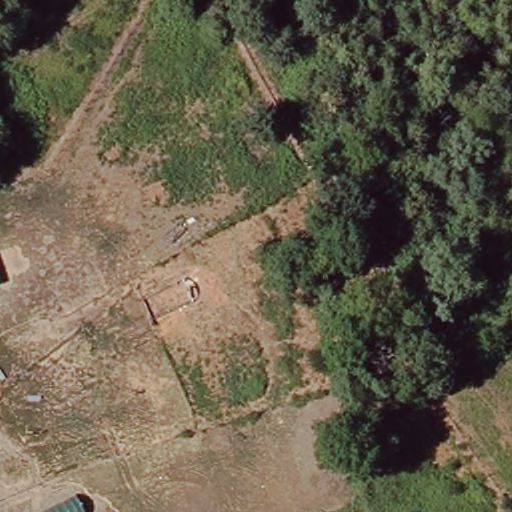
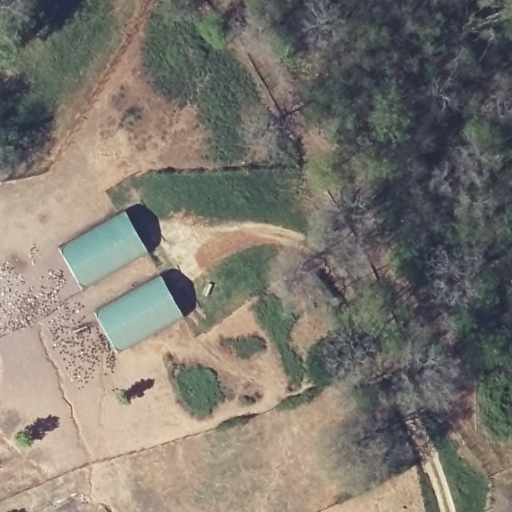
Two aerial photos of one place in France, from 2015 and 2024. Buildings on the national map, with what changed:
new [(125,210),(148,251),(82,289),(57,247),(125,210)]
new [(160,273),(183,315),(116,352),(92,310),(160,273)]
demolished [(73,494),(81,512),(28,512),(73,494)]

